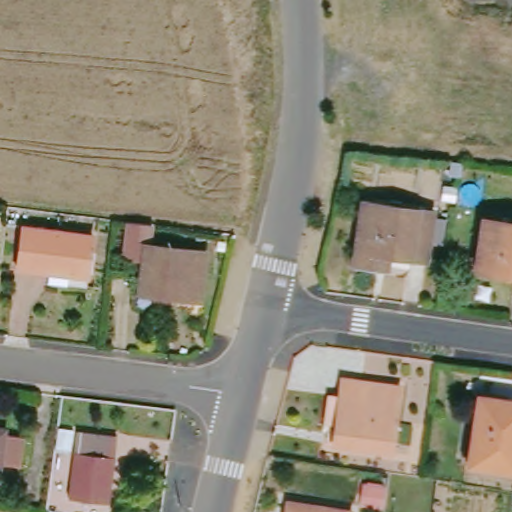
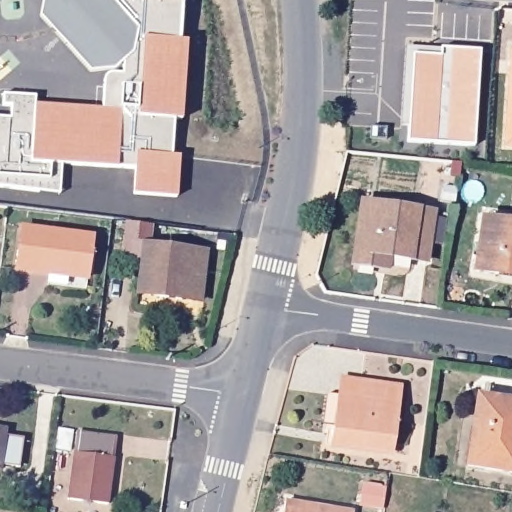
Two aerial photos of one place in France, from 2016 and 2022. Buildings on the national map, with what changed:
new [(135,168),(117,167),(63,163),(60,195),(0,188),(0,118),(10,119),(10,107),(2,105),(2,95),(35,96),(35,104),(102,109),(105,78),(110,74),(122,75),(124,62),(113,71),(91,73),(39,17),(42,0),(180,0),(184,1),(182,40),(187,40),(182,119),(175,118),(172,157),(180,156),(177,196),(132,194),(135,168)]
new [(512,47),(512,152),(498,151),(509,46),(512,47)]
new [(395,125),(400,47),(435,49),(475,52),(470,147),(402,143),(403,126),(395,125)]
unchanged [(375,258),(372,272),(348,268),(358,206),(430,216),(428,223),(438,225),(435,247),(425,247),(422,265),(375,258)]
unchanged [(495,270),(494,275),(471,272),(478,222),(512,227),(512,272),(495,270)]
unchanged [(145,253),(200,261),(194,309),(133,300),(137,265),(120,262),(124,228),(147,231),(145,253)]
unchanged [(84,278),(17,269),(22,229),(90,237),(84,278)]
unchanged [(325,445),(328,428),(317,426),(322,396),(333,397),(337,379),(396,389),(384,454),(325,445)]
unchanged [(467,470),(472,434),(468,433),(474,399),(512,405),(512,478),(467,470)]
unchanged [(69,448),(53,446),(56,426),(72,428),(69,448)]
unchanged [(0,467),(0,429),(18,430),(13,468),(0,467)]
unchanged [(103,499),(65,493),(75,430),(112,436),(103,499)]
unchanged [(370,507),(374,487),(392,490),(388,510),(370,507)]
unchanged [(353,510),(353,512),(284,512),(287,499),(353,510)]

